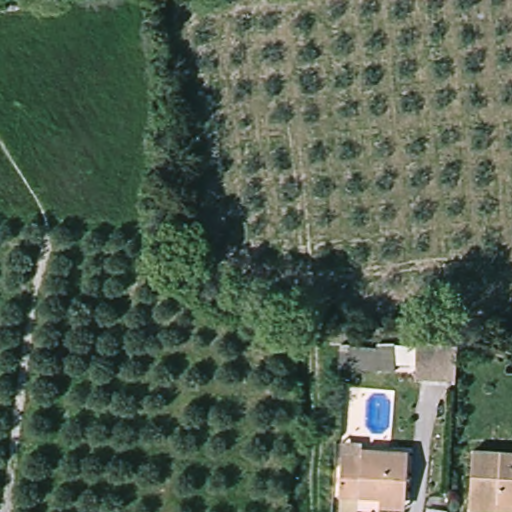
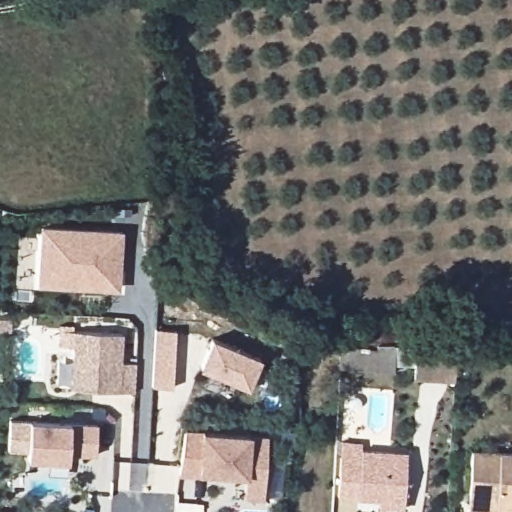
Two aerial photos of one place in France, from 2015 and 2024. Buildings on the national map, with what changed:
new [(42,229),(121,234),(118,290),(62,286),(39,285),(39,280),(42,229)]
new [(155,329),(175,330),(171,388),(151,386),(155,329)]
new [(73,331),(121,334),(119,362),(134,363),(133,392),(69,388),(73,331)]
new [(212,338),(259,359),(246,388),(199,367),(212,338)]
unchanged [(418,345),(457,350),(453,385),(414,380),(418,345)]
unchanged [(341,365),(334,364),(334,346),(344,347),(398,350),(395,370),(341,365)]
new [(28,421),(96,425),(94,455),(53,453),(53,460),(26,458),(28,421)]
new [(227,476),(220,476),(203,475),(204,478),(181,477),(183,435),(265,438),(263,478),(262,500),(244,499),(245,477),(227,476)]
unchanged [(408,510),(385,506),(386,497),(363,495),(362,502),(343,500),(348,461),(350,446),(369,450),(369,455),(415,460),(408,510)]
unchanged [(473,487),(477,450),(512,454),(512,492),(473,487)]

